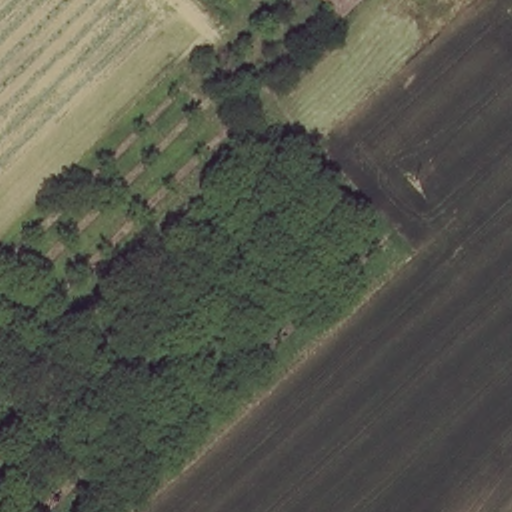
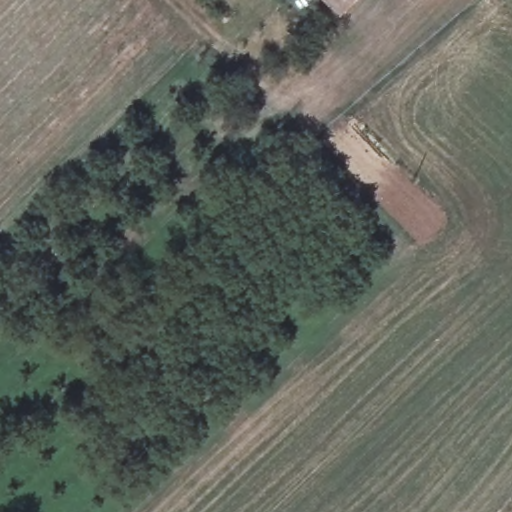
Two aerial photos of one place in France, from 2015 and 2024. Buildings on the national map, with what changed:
unchanged [(322,0),(350,0),(337,15),(322,0)]

